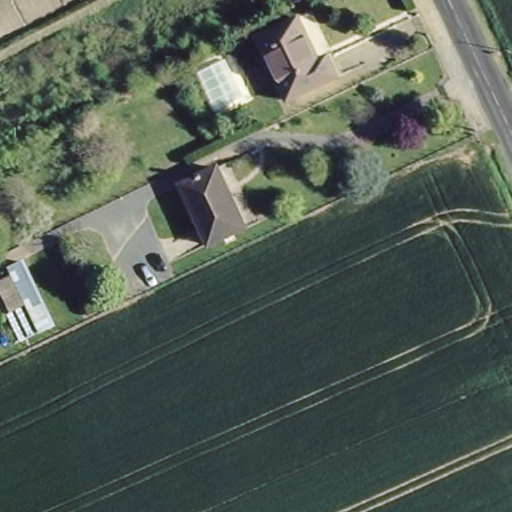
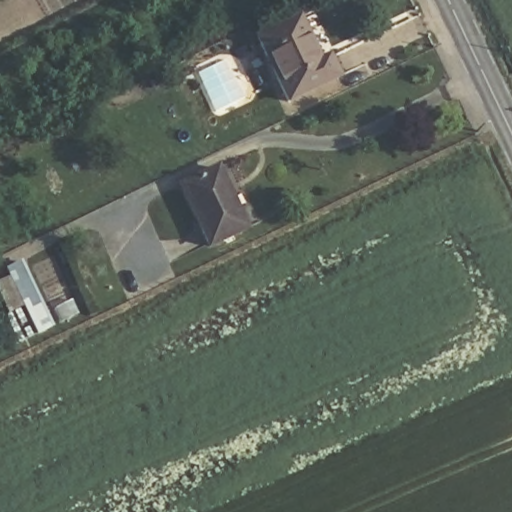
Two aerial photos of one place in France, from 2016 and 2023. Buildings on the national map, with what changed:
unchanged [(293,16),(314,60),(326,55),(334,75),(284,97),(254,35),(293,16)]
unchanged [(214,171),(241,229),(206,246),(178,187),(214,171)]

